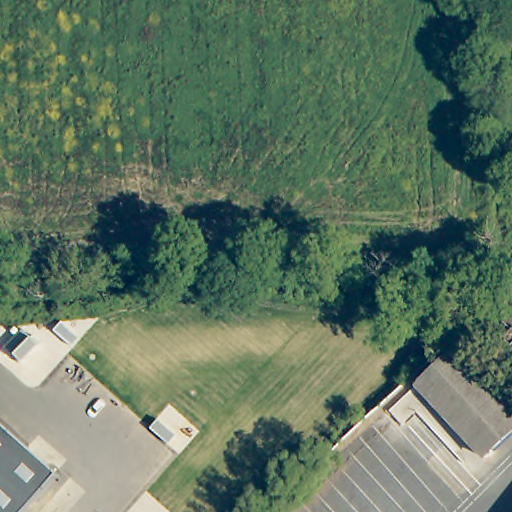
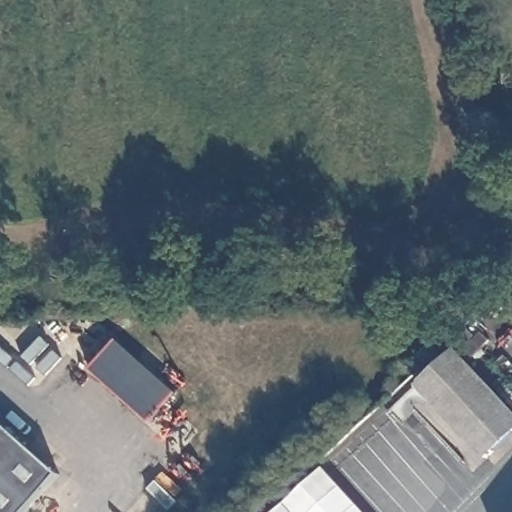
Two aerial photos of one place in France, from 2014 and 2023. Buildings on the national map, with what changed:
new [(90,368),(117,338),(178,391),(150,422),(90,368)]
unchanged [(512,398),(512,444),(494,461),(424,386),(468,347),(512,398)]
unchanged [(25,512),(0,512),(0,423),(59,475),(25,512)]
new [(366,512),(275,512),(324,466),(366,512)]

